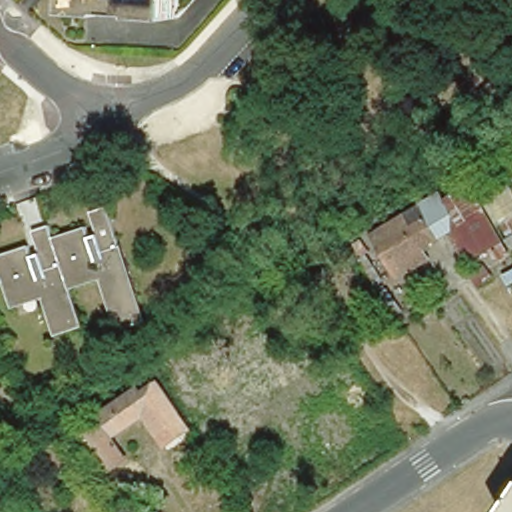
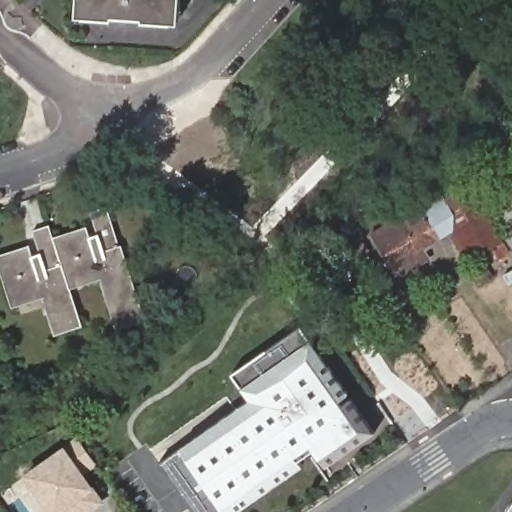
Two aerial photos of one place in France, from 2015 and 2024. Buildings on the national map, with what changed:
unchanged [(170,13),(162,13),(134,11),(134,8),(102,6),(102,9),(74,7),(65,6),(65,0),(171,0),(170,13)]
unchanged [(442,192),(448,203),(502,170),(512,186),(512,217),(498,225),(512,248),(512,254),(495,263),(490,255),(477,263),(470,252),(452,263),(440,243),(416,258),(421,266),(398,280),(375,237),(442,192)]
unchanged [(1,262),(34,251),(39,266),(47,262),(39,236),(55,231),(59,243),(92,232),(96,246),(104,243),(96,217),(112,212),(150,324),(125,333),(107,279),(75,289),(88,329),(62,337),(49,297),(16,308),(1,262)]
unchanged [(470,279),(488,266),(500,282),(482,295),(470,279)]
new [(250,398),(242,387),(232,373),(301,325),(310,338),(375,431),(325,465),(318,457),(313,450),(298,459),(302,466),(234,512),(224,512),(195,512),(161,462),(180,447),(250,398)]
demolished [(76,436),(62,446),(72,462),(49,475),(34,450),(51,438),(47,429),(65,418),(70,426),(136,389),(139,395),(157,386),(188,437),(164,450),(148,419),(112,440),(127,465),(103,479),(76,436)]
new [(77,437),(97,464),(84,473),(105,502),(91,512),(49,512),(22,475),(77,437)]
unchanged [(506,512),(512,503),(512,512),(506,512)]

